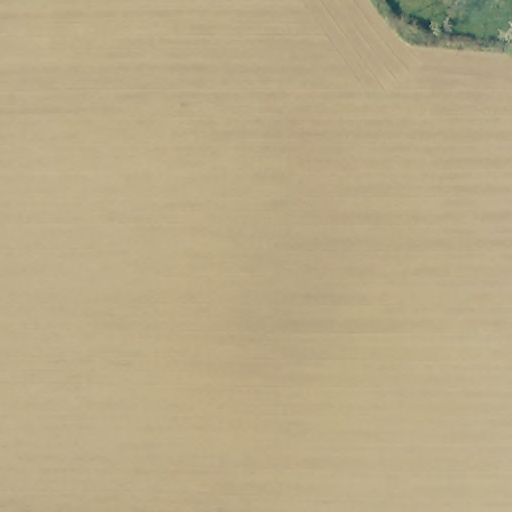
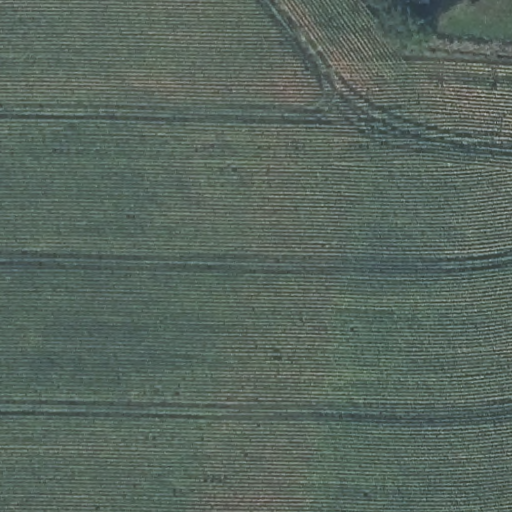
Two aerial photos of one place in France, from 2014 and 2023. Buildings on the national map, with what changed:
[]

